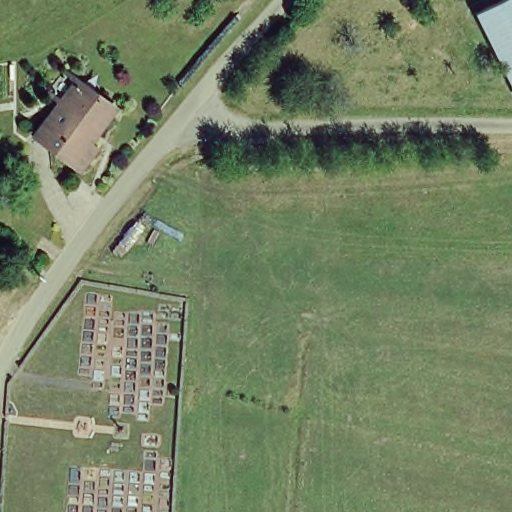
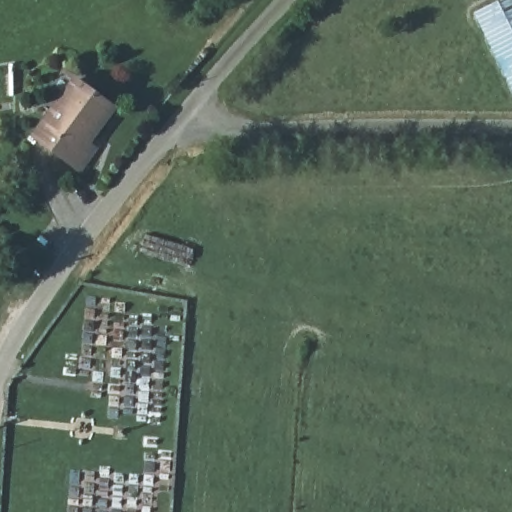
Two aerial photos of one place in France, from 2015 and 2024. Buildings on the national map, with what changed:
unchanged [(474,16),(503,0),(512,0),(512,84),(474,16)]
unchanged [(114,107),(88,149),(100,157),(77,177),(31,136),(77,80),(114,107)]

